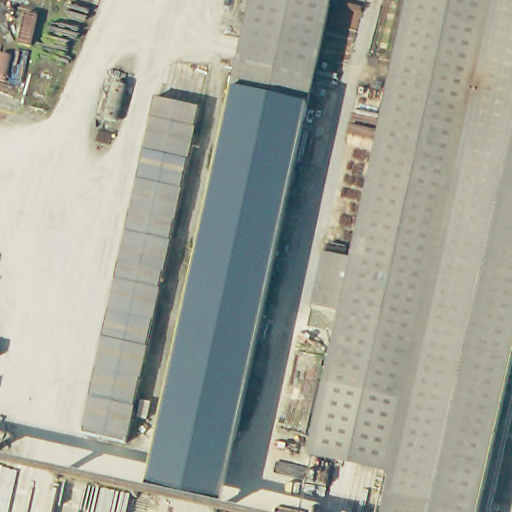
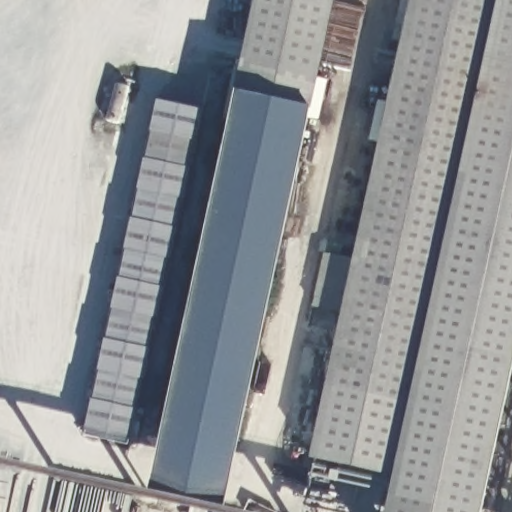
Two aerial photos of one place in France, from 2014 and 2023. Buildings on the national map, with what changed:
unchanged [(320,84),(244,67),(258,0),(339,0),(320,84)]
unchanged [(485,512),(388,512),(397,475),(313,458),(345,312),(357,259),(413,0),(512,0),(512,387),(485,512)]
unchanged [(221,509),(151,494),(239,92),(244,67),(320,84),(221,509)]
unchanged [(153,105),(197,115),(124,453),(79,443),(153,105)]
unchanged [(315,306),(327,253),(357,259),(345,312),(315,306)]

